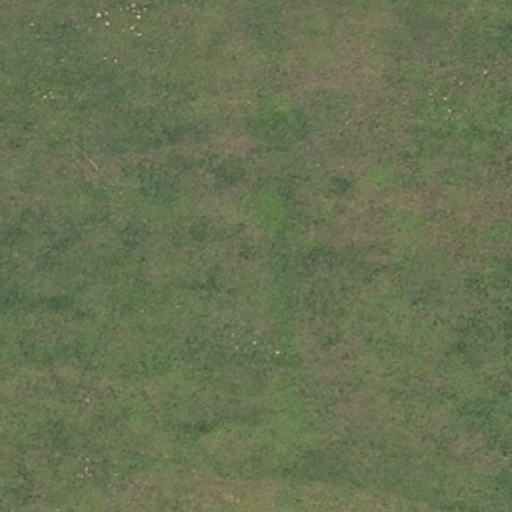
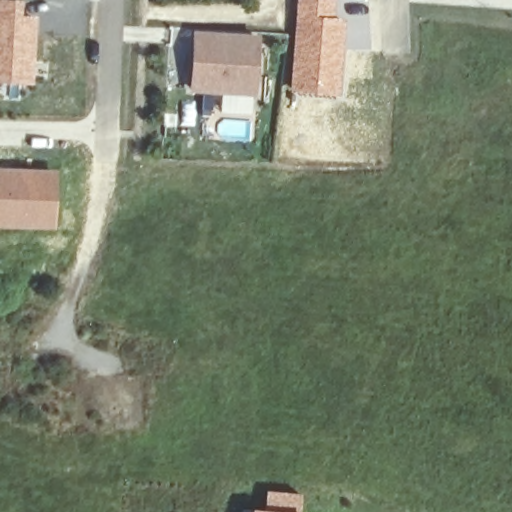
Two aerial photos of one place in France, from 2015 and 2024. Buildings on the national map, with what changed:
new [(36,15),(33,84),(0,82),(0,0),(22,0),(22,14),(36,15)]
new [(337,0),(336,16),(346,18),(341,95),(289,90),(295,0),(337,0)]
new [(258,34),(255,95),(190,91),(194,30),(258,34)]
new [(58,168),(54,229),(0,227),(0,166),(58,168)]
new [(274,512),(245,512),(245,509),(274,512)]

